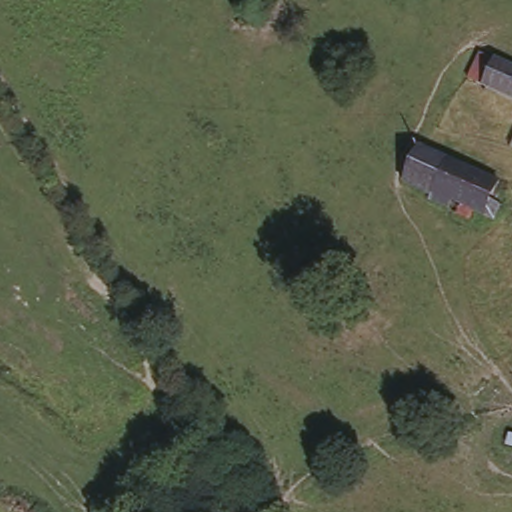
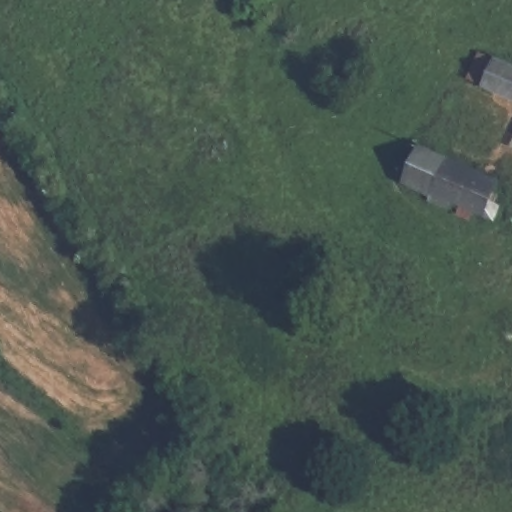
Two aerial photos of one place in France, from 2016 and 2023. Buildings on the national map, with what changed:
unchanged [(241,0),(270,0),(259,27),(252,25),(234,17),(241,0)]
unchanged [(472,84),(485,56),(512,68),(512,102),(472,84)]
unchanged [(449,197),(444,206),(419,195),(421,191),(401,181),(406,169),(418,145),(495,181),(488,195),(500,202),(492,218),(449,197)]

